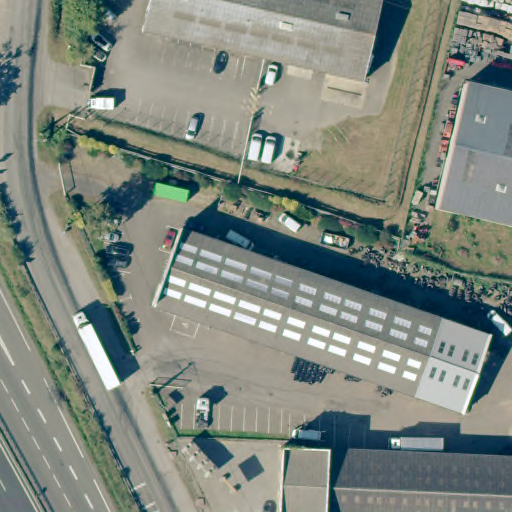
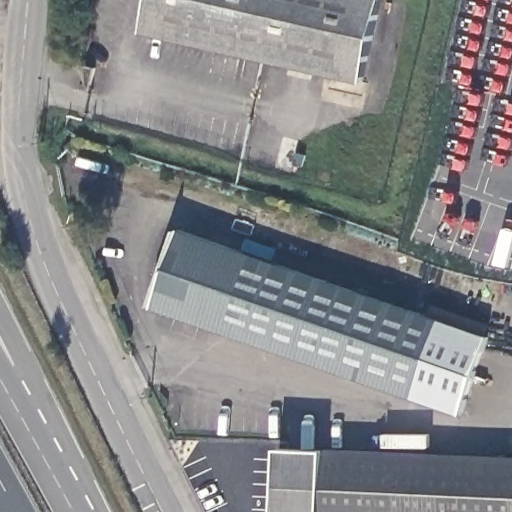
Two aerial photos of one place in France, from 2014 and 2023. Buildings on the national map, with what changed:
unchanged [(134,26),(140,0),(370,0),(352,77),(134,26)]
demolished [(462,81),(512,92),(512,221),(433,205),(462,81)]
unchanged [(459,412),(407,393),(396,389),(150,302),(176,226),(396,304),(424,314),(485,336),(459,412)]
unchanged [(274,437),(394,442),(512,448),(512,512),(272,512),(274,437)]

